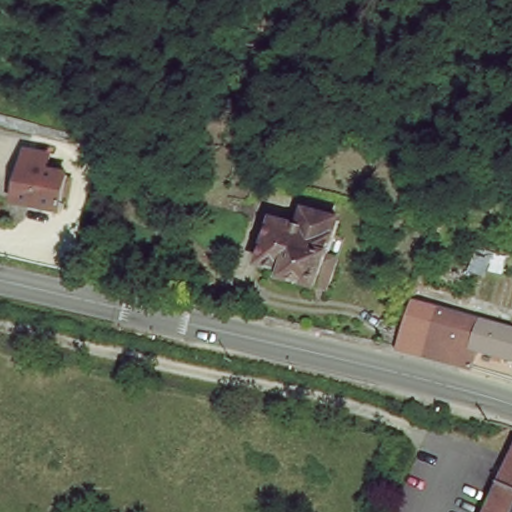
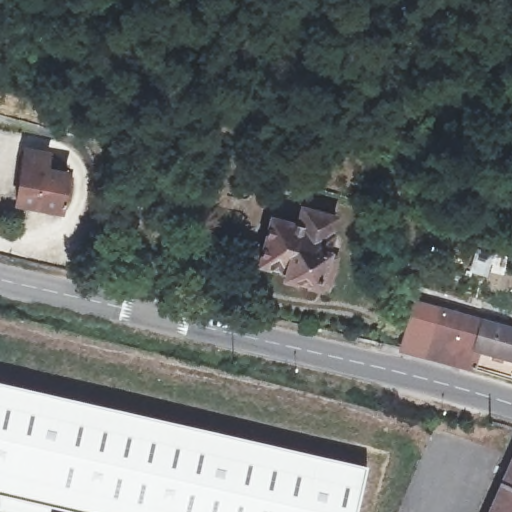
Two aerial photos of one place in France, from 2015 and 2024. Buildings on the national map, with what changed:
unchanged [(45,173),(44,179),(63,182),(57,219),(10,211),(22,158),(40,161),(39,171),(45,173)]
unchanged [(282,274),(256,268),(268,222),(294,229),(299,211),(331,220),(333,223),(324,259),(333,262),(327,285),(325,284),(323,292),(280,282),(282,274)]
unchanged [(512,339),(512,364),(479,357),(471,376),(433,364),(404,357),(400,357),(412,310),(512,339)]
new [(367,467),(357,512),(77,512),(50,506),(49,512),(7,512),(0,510),(0,383),(367,467)]
unchanged [(495,502),(500,489),(512,462),(512,512),(490,512),(495,502)]

